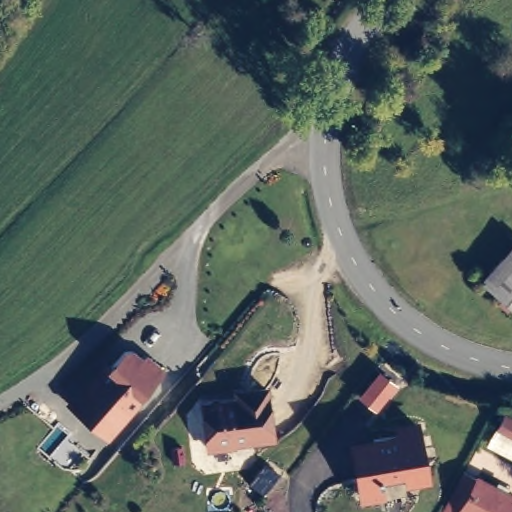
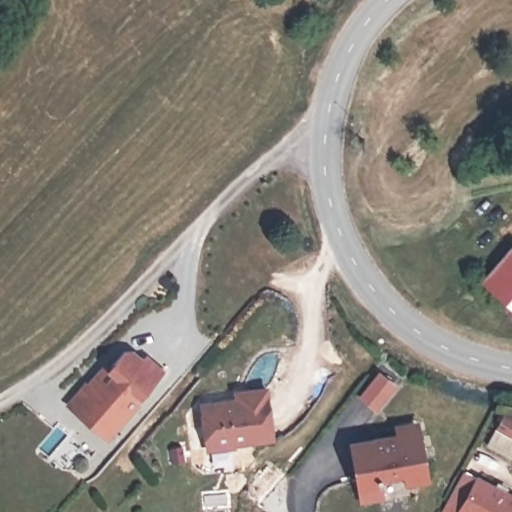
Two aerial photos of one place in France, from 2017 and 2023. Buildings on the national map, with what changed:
unchanged [(512,247),(512,248),(512,318),(505,311),(502,316),(493,308),(497,304),(477,287),(512,247)]
unchanged [(165,371),(107,440),(67,402),(129,341),(165,371)]
unchanged [(362,397),(380,374),(394,386),(375,408),(362,397)]
unchanged [(232,398),(240,397),(260,394),(267,444),(227,449),(227,451),(202,454),(197,410),(232,405),(232,398)]
unchanged [(354,506),(352,497),(344,454),(364,451),(362,445),(385,441),(384,433),(404,429),(414,486),(394,489),(392,485),(392,482),(385,484),(385,481),(384,481),(385,486),(370,488),(372,493),(373,503),(354,506)]
unchanged [(459,476),(512,505),(512,512),(439,512),(459,476)]

